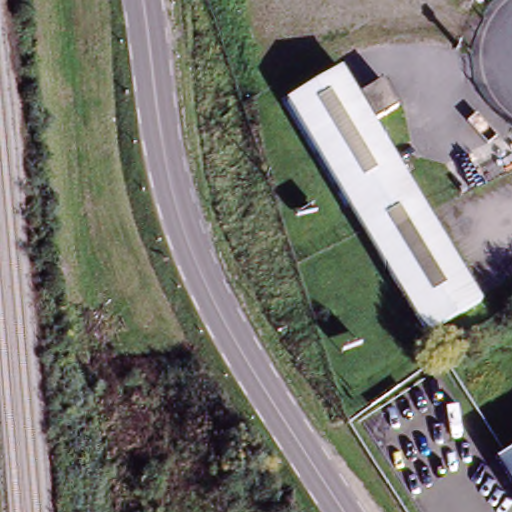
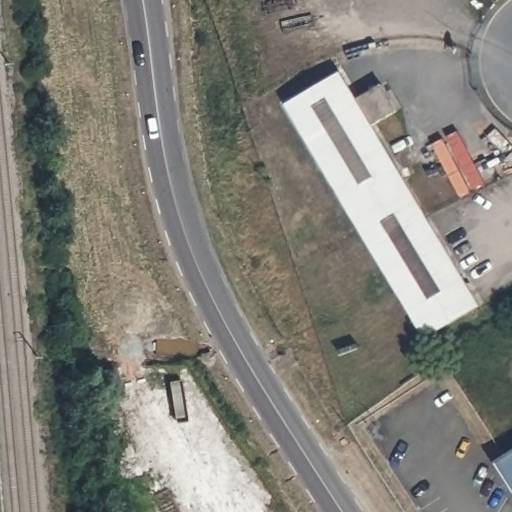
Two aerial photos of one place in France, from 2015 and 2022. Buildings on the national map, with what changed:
unchanged [(355,208),(295,100),(345,71),(360,96),(385,82),(400,109),(375,123),(408,183),(355,208)]
unchanged [(408,183),(427,217),(477,303),(425,333),(355,208),(408,183)]
unchanged [(496,463),(512,452),(512,487),(496,463)]

